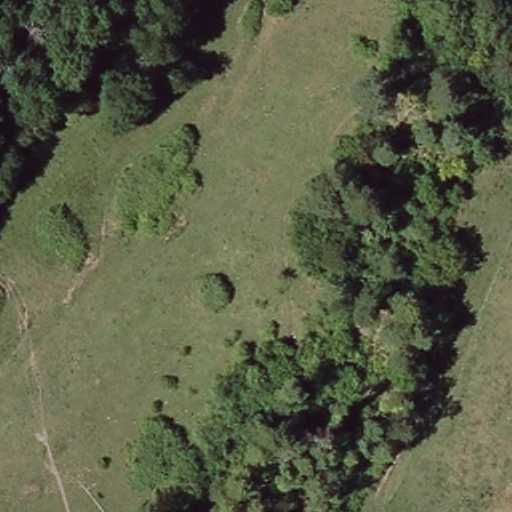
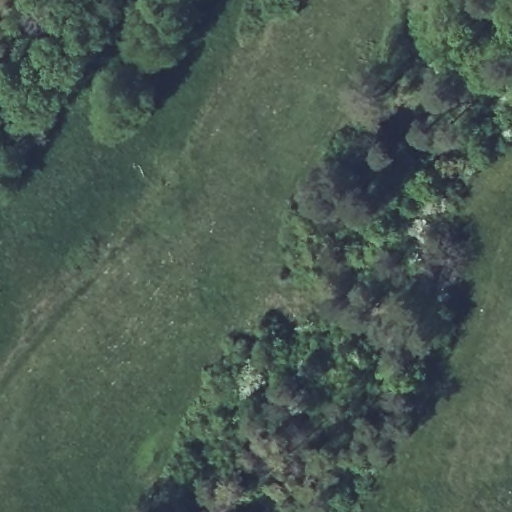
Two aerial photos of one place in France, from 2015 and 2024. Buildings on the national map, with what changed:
[]

